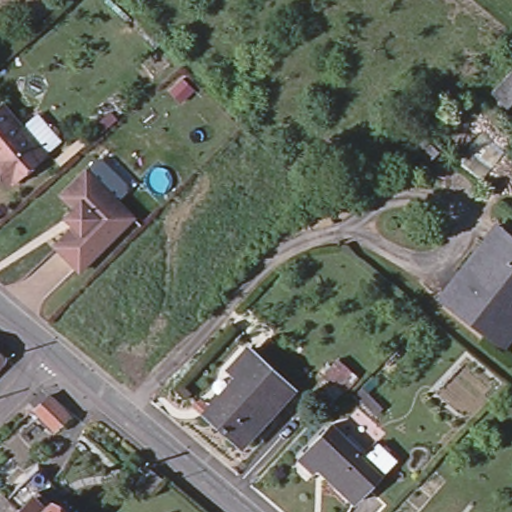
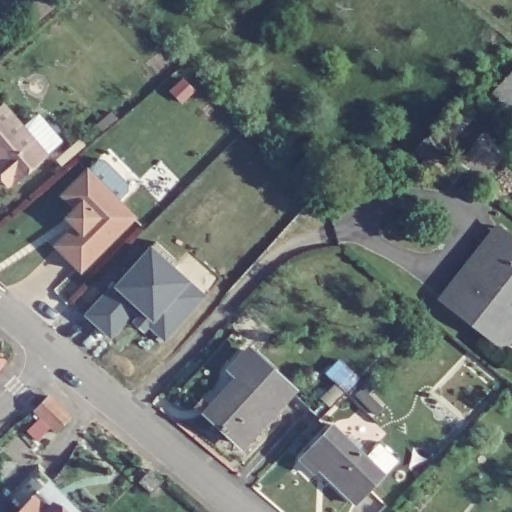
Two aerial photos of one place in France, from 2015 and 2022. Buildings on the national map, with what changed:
unchanged [(512,80),(512,107),(498,94),(512,80)]
unchanged [(0,174),(0,109),(5,105),(48,154),(15,184),(12,180),(8,184),(0,174)]
unchanged [(57,244),(76,224),(68,215),(76,206),(63,194),(88,169),(98,159),(129,190),(119,200),(135,215),(82,268),(57,244)]
new [(177,261),(171,268),(202,295),(164,338),(132,311),(110,335),(85,312),(155,242),(177,261)]
unchanged [(458,305),(478,281),(470,274),(494,246),(503,254),(512,243),(512,327),(500,341),(458,305)]
unchanged [(293,390),(245,445),(210,413),(240,377),(231,369),(248,350),(293,390)]
unchanged [(5,366),(0,371),(0,361),(5,366)]
unchanged [(70,420),(58,432),(40,415),(52,401),(70,420)]
unchanged [(347,433),(357,443),(353,447),(363,457),(367,453),(365,450),(374,441),(393,460),(380,473),(351,502),(315,467),(310,472),(295,458),(330,424),(343,437),(347,433)]
unchanged [(1,490),(11,498),(39,469),(50,478),(40,490),(62,512),(0,512),(0,492),(1,490)]

